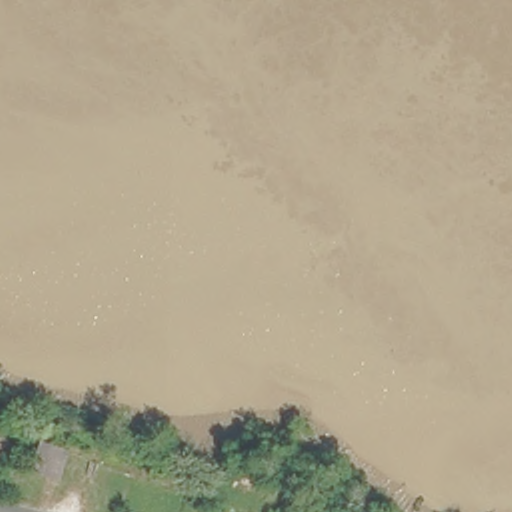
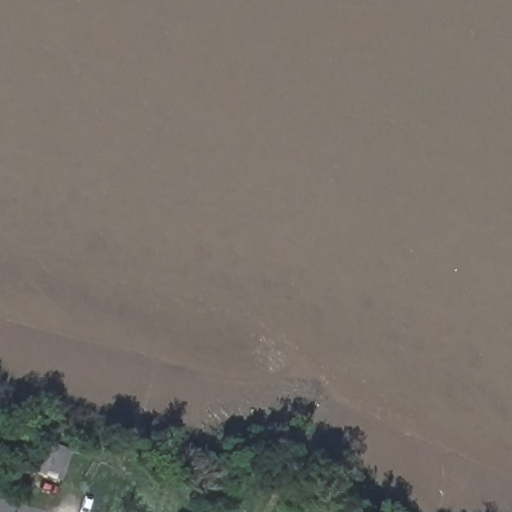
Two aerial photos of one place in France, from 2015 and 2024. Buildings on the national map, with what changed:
unchanged [(55,490),(40,484),(39,488),(28,484),(46,434),(73,443),(55,490)]
unchanged [(213,512),(206,512),(206,510),(213,512)]

